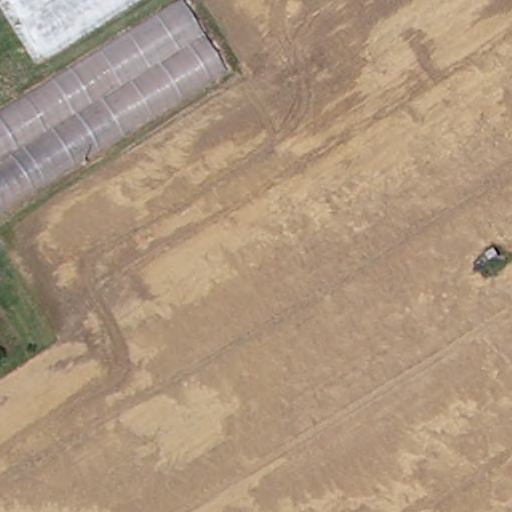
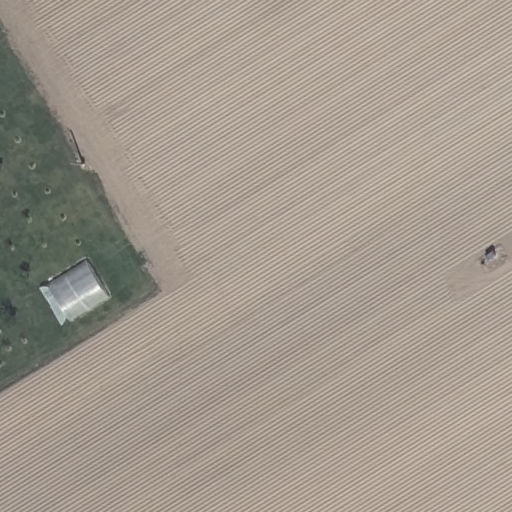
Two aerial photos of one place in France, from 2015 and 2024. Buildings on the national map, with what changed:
demolished [(0,112),(181,0),(191,0),(232,63),(0,205),(0,112)]
demolished [(39,55),(3,0),(130,0),(39,55)]
new [(70,321),(49,286),(87,262),(108,298),(70,321)]

